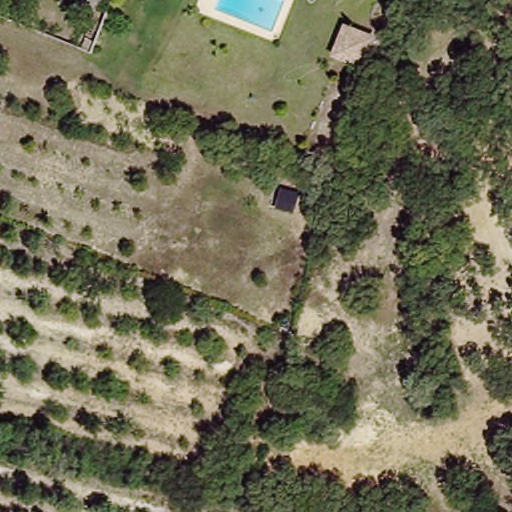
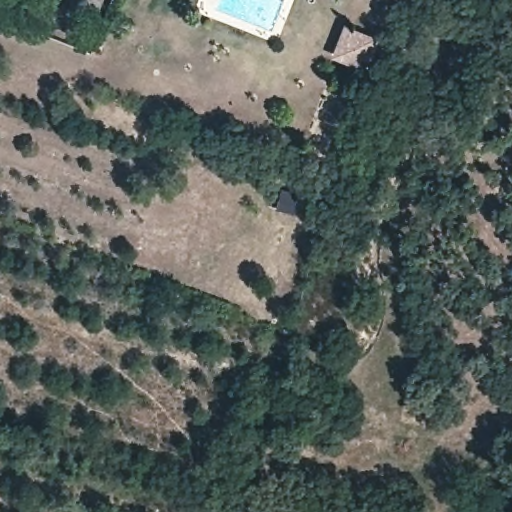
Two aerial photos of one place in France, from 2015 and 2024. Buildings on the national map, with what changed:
unchanged [(71,9),(75,0),(105,0),(96,20),(71,9)]
unchanged [(335,59),(346,27),(376,39),(365,68),(335,59)]

